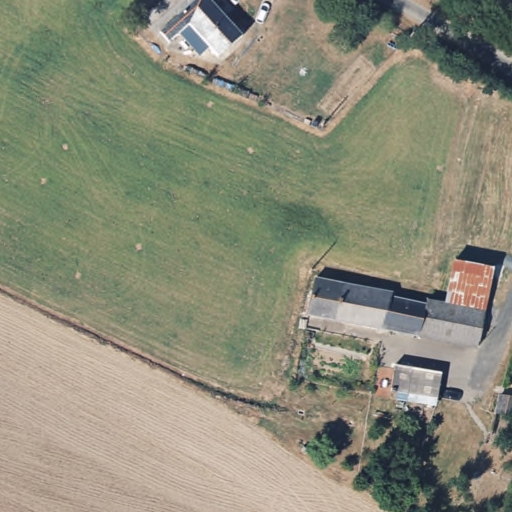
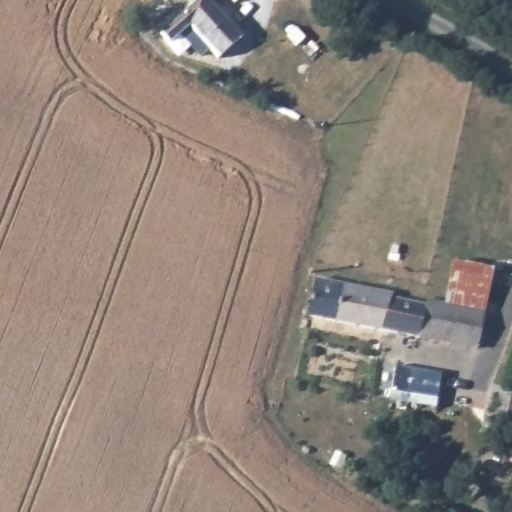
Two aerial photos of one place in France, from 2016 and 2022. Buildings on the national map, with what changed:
unchanged [(217,59),(174,11),(185,0),(217,0),(247,33),(217,59)]
unchanged [(493,268),(476,351),(417,339),(426,301),(445,305),(455,260),(493,268)]
unchanged [(417,339),(327,319),(307,314),(315,278),(335,282),(426,301),(417,339)]
unchanged [(432,407),(425,404),(387,396),(393,367),(432,376),(438,378),(432,407)]

